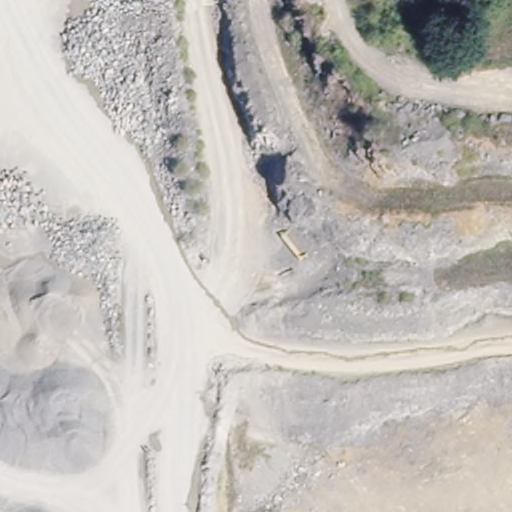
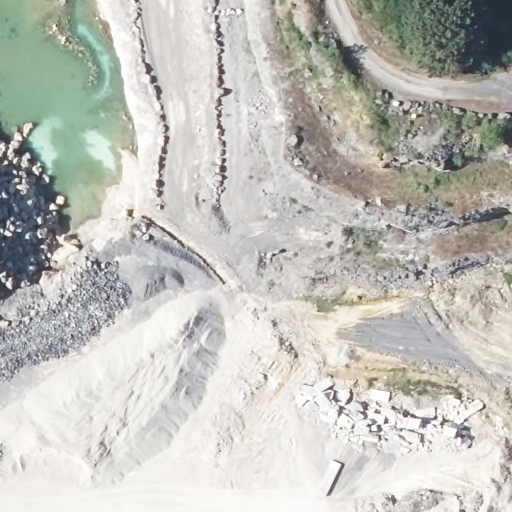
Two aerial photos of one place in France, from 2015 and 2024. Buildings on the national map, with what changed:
[]

